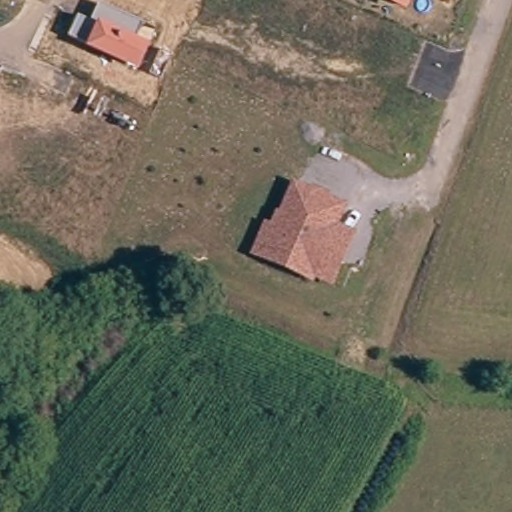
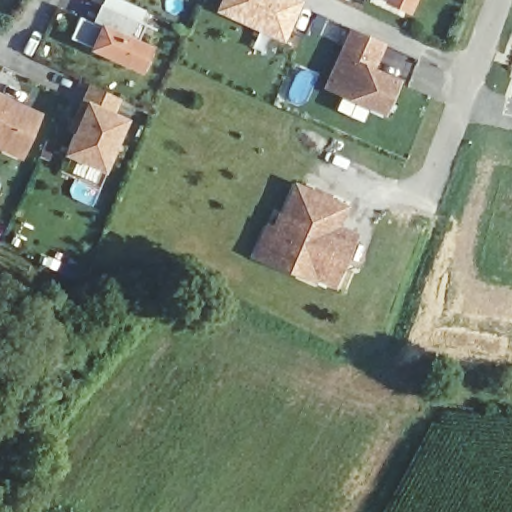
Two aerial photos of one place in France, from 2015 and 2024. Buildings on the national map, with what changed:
new [(284,43),(214,11),(220,0),(302,0),(303,1),(284,43)]
unchanged [(380,2),(381,0),(414,0),(408,13),(380,2)]
unchanged [(144,23),(138,38),(152,46),(141,73),(68,39),(80,16),(92,21),(100,4),(144,23)]
new [(325,91),(350,31),(387,48),(378,70),(401,81),(385,116),(325,91)]
new [(105,174),(63,155),(72,134),(70,133),(90,87),(123,103),(117,114),(129,120),(105,174)]
new [(22,163),(0,153),(0,95),(44,116),(22,163)]
unchanged [(347,262),(338,284),(318,275),(316,279),(269,259),(259,255),(271,227),(277,230),(282,216),(286,217),(299,187),(316,194),(317,190),(332,196),(331,200),(347,208),(339,228),(358,236),(347,262)]

